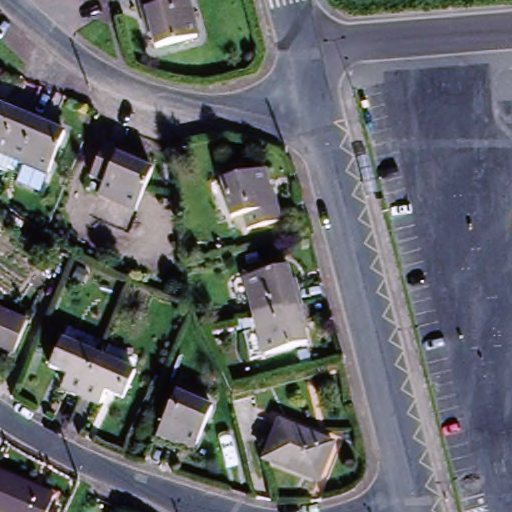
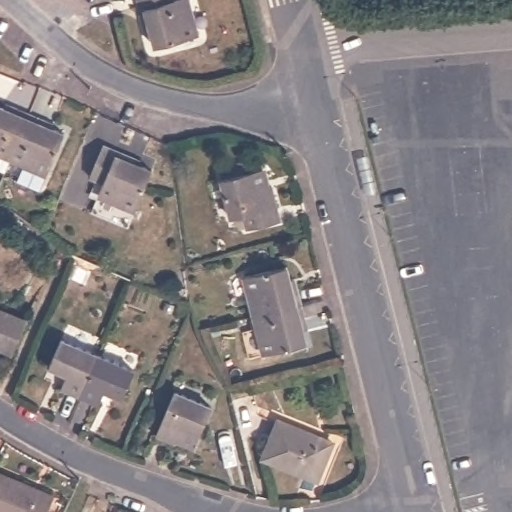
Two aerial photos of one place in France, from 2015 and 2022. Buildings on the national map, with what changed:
unchanged [(136,0),(175,0),(139,9),(136,0)]
unchanged [(198,37),(159,47),(155,28),(145,31),(139,9),(175,0),(188,0),(198,37)]
unchanged [(0,164),(0,106),(8,109),(11,101),(29,108),(49,117),(45,125),(69,134),(52,172),(44,189),(2,171),(4,166),(0,164)]
unchanged [(138,213),(104,198),(109,186),(93,178),(107,146),(137,159),(134,164),(156,172),(138,213)]
unchanged [(281,221),(244,230),(241,218),(226,222),(217,180),(258,170),(262,191),(272,188),(281,221)]
unchanged [(304,301),(254,313),(244,274),(285,263),(290,281),(298,278),(304,301)]
unchanged [(309,323),(301,324),(306,344),(264,355),(254,313),(304,301),(309,323)]
unchanged [(15,355),(0,349),(0,310),(29,323),(15,355)]
unchanged [(59,388),(66,374),(49,366),(63,335),(99,351),(79,397),(59,388)]
unchanged [(79,397),(99,351),(140,369),(127,400),(107,390),(101,407),(79,397)]
unchanged [(197,442),(182,436),(177,444),(158,435),(177,391),(213,405),(197,442)]
unchanged [(314,479),(262,456),(279,418),(331,440),(314,479)]
unchanged [(58,494),(50,512),(0,512),(0,468),(58,494)]

